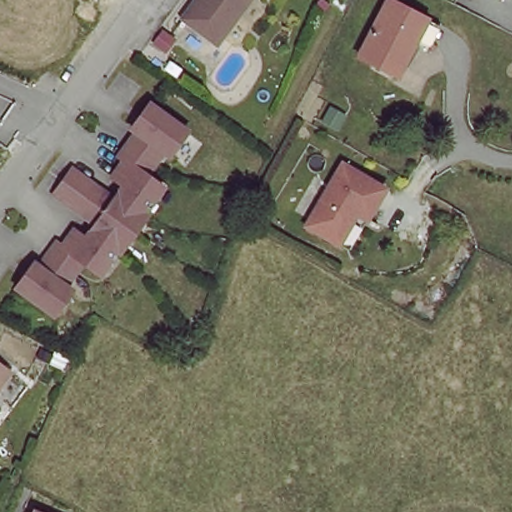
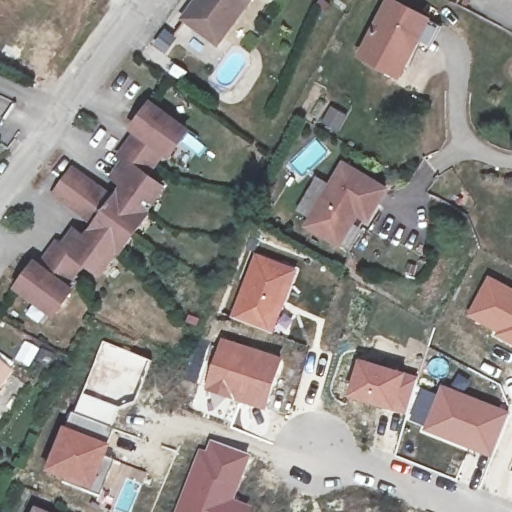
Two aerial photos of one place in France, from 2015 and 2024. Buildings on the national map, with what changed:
unchanged [(193,0),(248,0),(215,44),(180,18),(193,0)]
unchanged [(388,0),(393,0),(424,17),(393,77),(356,55),(388,0)]
unchanged [(128,129),(147,105),(184,132),(166,157),(160,153),(144,177),(159,190),(144,205),(145,214),(117,253),(111,250),(93,275),(77,264),(61,286),(66,290),(47,314),(11,287),(30,262),(35,265),(52,243),(58,247),(70,230),(80,238),(90,224),(51,192),(68,169),(107,200),(120,183),(110,176),(121,161),(116,156),(134,134),(128,129)]
unchanged [(306,228),(342,166),(386,190),(367,220),(356,215),(352,223),(343,223),(332,243),(306,228)]
new [(253,251),(298,268),(275,334),(228,317),(253,251)]
new [(512,287),(512,345),(491,334),(493,332),(464,315),(486,274),(512,287)]
new [(220,336),(284,355),(268,410),(203,389),(220,336)]
new [(82,389),(102,339),(152,359),(135,398),(133,397),(122,399),(117,405),(112,428),(108,445),(92,494),(40,473),(60,427),(63,428),(71,412),(82,389)]
new [(407,416),(345,397),(357,357),(418,375),(416,386),(436,393),(441,383),(451,386),(457,372),(470,378),(465,392),(511,411),(492,459),(419,431),(422,426),(406,419),(407,416)]
unchanged [(11,369),(0,383),(0,360),(11,369)]
new [(197,448),(204,451),(208,439),(251,456),(233,500),(252,509),(251,512),(173,512),(197,448)]
unchanged [(38,508),(47,512),(36,512),(38,508)]

